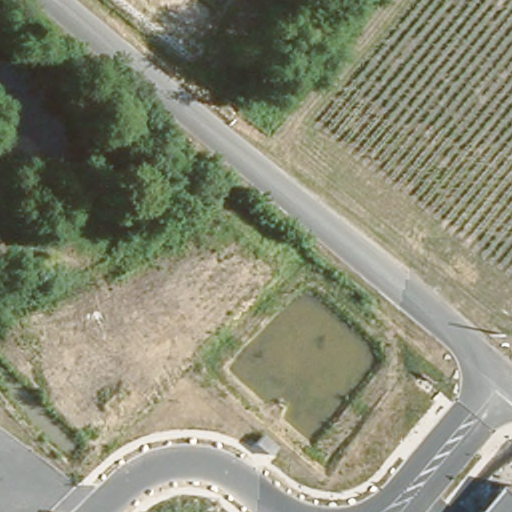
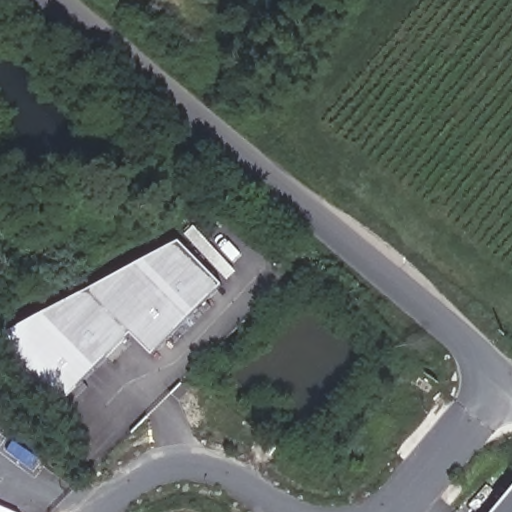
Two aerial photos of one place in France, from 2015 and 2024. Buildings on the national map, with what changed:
new [(222,286),(150,356),(129,334),(57,404),(0,346),(0,335),(179,242),(222,286)]
unchanged [(500,512),(512,498),(512,512),(500,512)]

